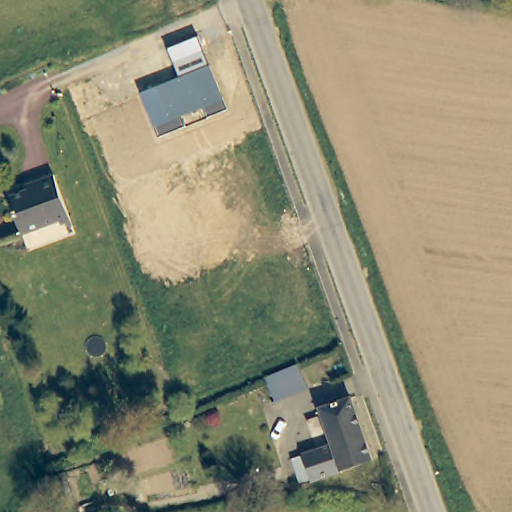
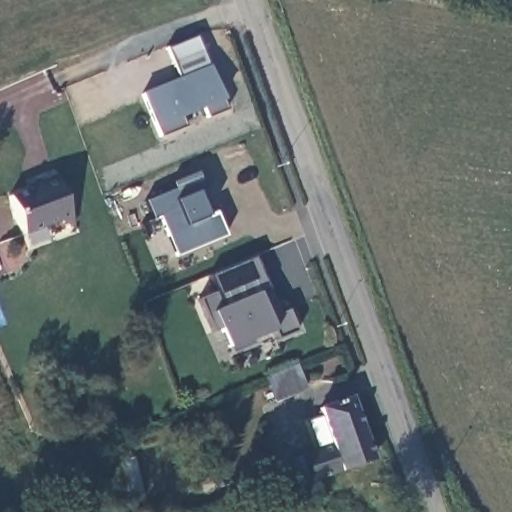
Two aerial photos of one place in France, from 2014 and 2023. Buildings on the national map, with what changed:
unchanged [(178,76),(167,49),(197,36),(208,66),(226,109),(207,116),(203,107),(180,116),(184,126),(158,136),(155,127),(141,92),(178,76)]
unchanged [(64,225),(62,217),(20,231),(6,192),(37,180),(36,176),(51,171),(67,216),(70,223),(64,225)]
new [(175,257),(157,217),(151,220),(143,202),(173,189),(170,183),(196,172),(203,188),(196,192),(206,215),(214,213),(223,236),(175,257)]
new [(276,341),(271,332),(251,340),(252,345),(231,353),(230,349),(227,350),(218,332),(212,333),(197,300),(215,292),(207,276),(254,257),(277,315),(287,311),(295,332),(276,341)]
unchanged [(296,387),(264,401),(254,378),(287,364),(296,387)]
unchanged [(299,454),(328,443),(316,409),(348,399),(369,459),(338,470),(337,469),(308,479),(299,454)]

